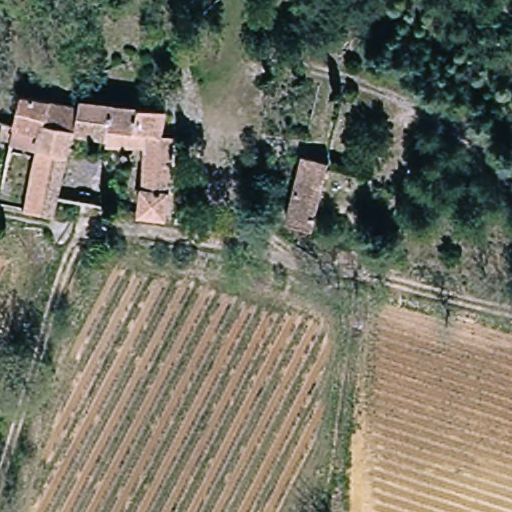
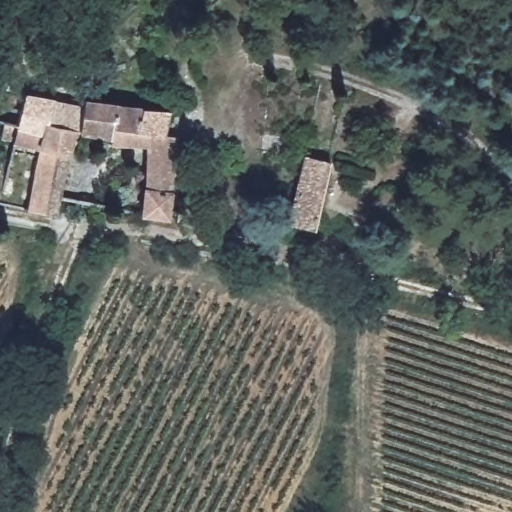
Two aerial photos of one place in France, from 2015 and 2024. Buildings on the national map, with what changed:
unchanged [(23,99),(77,109),(72,134),(40,130),(35,153),(8,148),(23,99)]
unchanged [(148,143),(113,141),(113,138),(72,134),(77,109),(162,116),(158,142),(170,143),(161,220),(143,216),(148,143)]
unchanged [(53,220),(22,215),(35,153),(40,130),(72,134),(53,220)]
unchanged [(288,222),(306,159),(330,165),(313,229),(288,222)]

